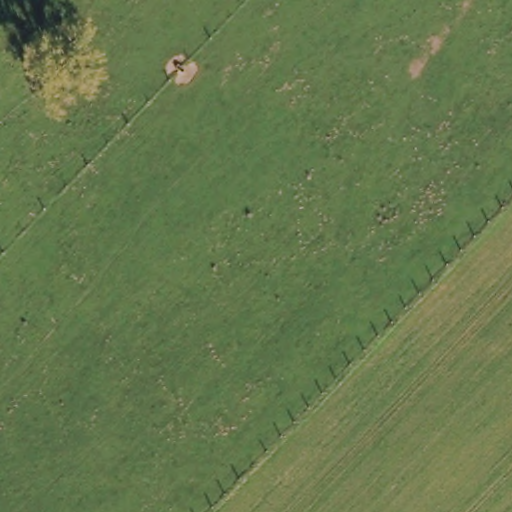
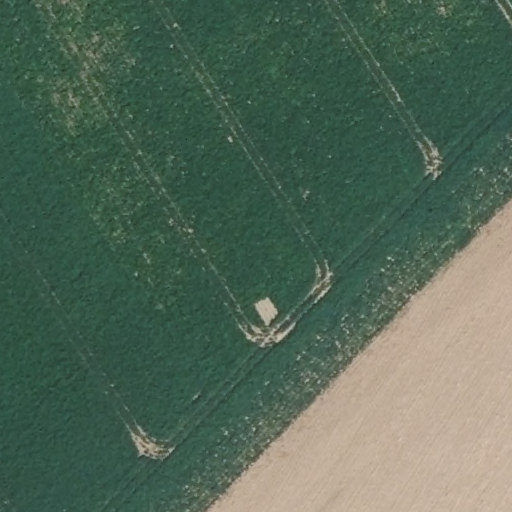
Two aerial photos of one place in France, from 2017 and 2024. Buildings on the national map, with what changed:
[]

